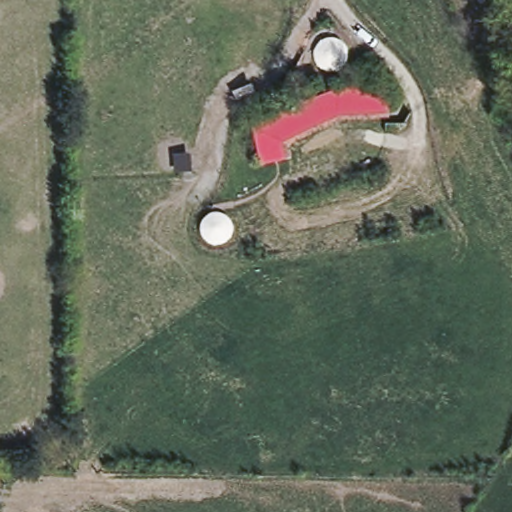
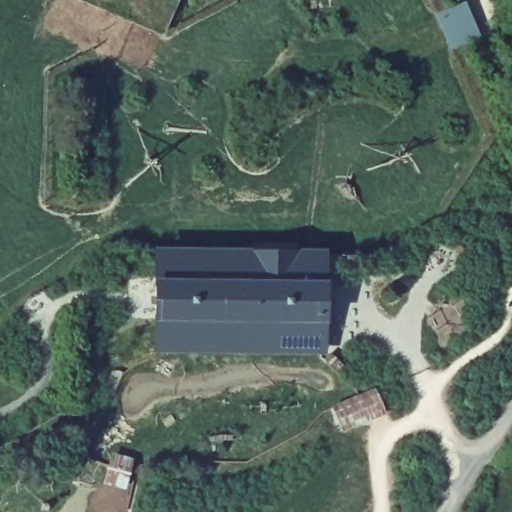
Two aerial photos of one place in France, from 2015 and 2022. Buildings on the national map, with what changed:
new [(163,32),(88,0),(176,0),(163,32)]
demolished [(389,85),(392,120),(339,121),(337,87),(389,85)]
demolished [(329,126),(285,143),(287,161),(257,167),(252,126),(316,96),(329,126)]
new [(323,294),(322,350),(159,348),(158,254),(322,255),(323,294)]

